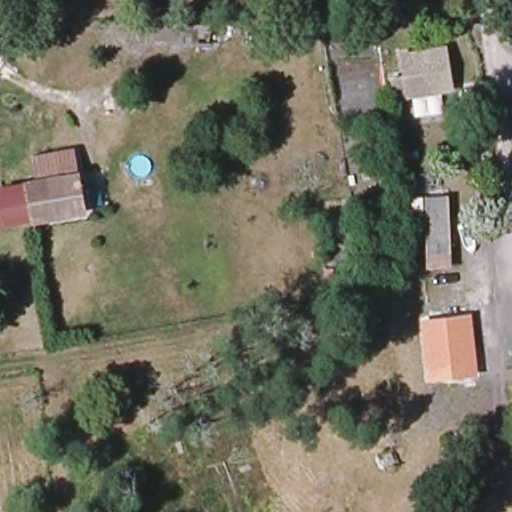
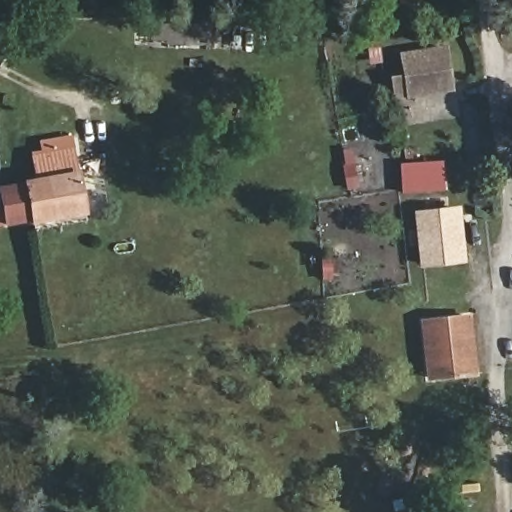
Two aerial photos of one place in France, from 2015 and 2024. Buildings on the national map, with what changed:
unchanged [(406,81),(405,53),(443,51),(449,95),(382,102),(380,84),(406,81)]
unchanged [(83,217),(1,233),(0,227),(0,189),(31,180),(28,155),(70,149),(83,217)]
new [(442,160),(444,190),(401,193),(399,163),(442,160)]
unchanged [(449,257),(418,261),(412,200),(445,199),(449,257)]
unchanged [(474,377),(440,380),(435,321),(468,316),(474,377)]

